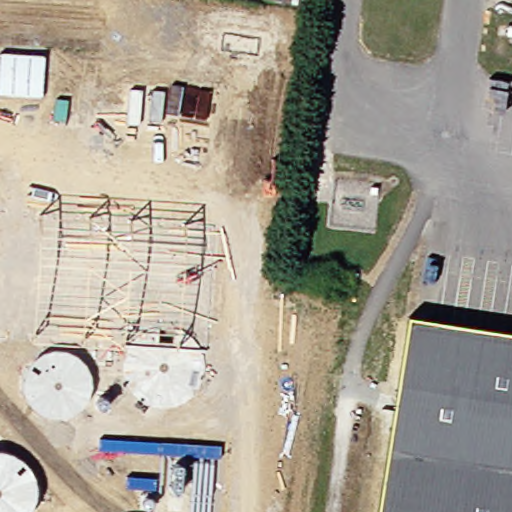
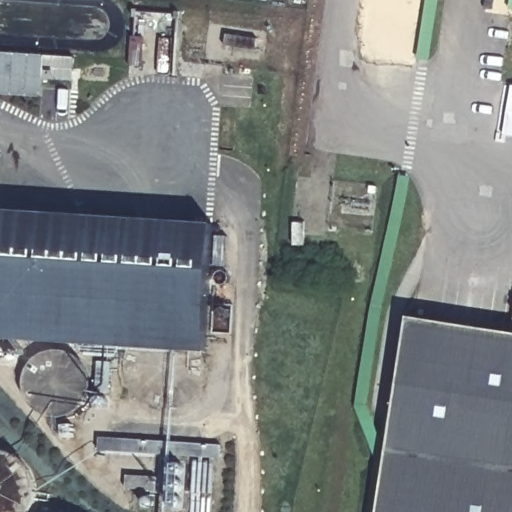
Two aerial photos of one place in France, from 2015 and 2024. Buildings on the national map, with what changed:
new [(42,56),(40,98),(0,95),(0,54),(42,56)]
new [(512,138),(505,137),(512,87),(512,138)]
new [(205,352),(0,338),(0,212),(211,226),(205,352)]
unchanged [(512,512),(374,512),(405,316),(429,320),(512,333),(512,512)]
new [(50,417),(42,416),(36,411),(30,404),(25,396),(24,386),(25,377),(29,367),(35,359),(42,354),(54,351),(63,351),(73,355),(80,360),(87,368),(91,378),(92,387),(90,397),(84,405),(79,411),(68,417),(60,418),(50,417)]
new [(100,450),(100,437),(220,444),(220,457),(100,450)]
new [(7,452),(15,456),(25,463),(32,472),(35,484),(35,496),(34,506),(30,512),(0,512),(0,451),(7,452)]

